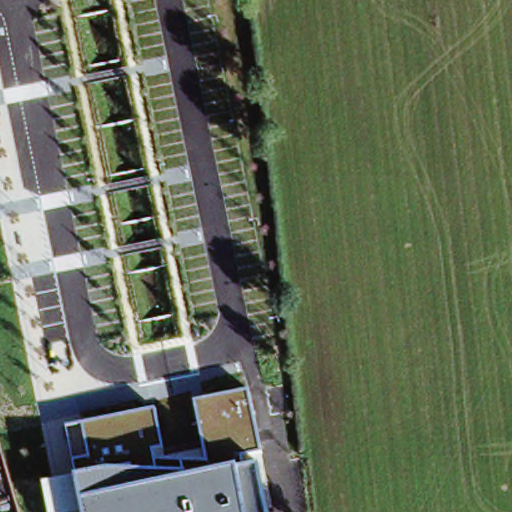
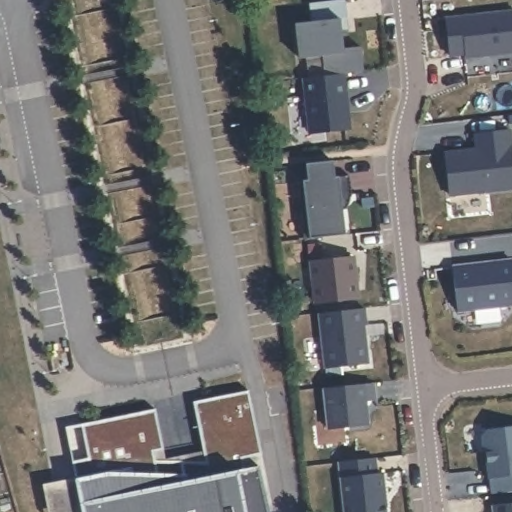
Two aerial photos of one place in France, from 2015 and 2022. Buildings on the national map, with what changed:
new [(306,2),(324,0),(342,0),(344,17),(336,18),(339,48),(357,47),(359,72),(339,74),(324,76),(321,56),(298,58),(294,23),(309,21),(306,2)]
new [(512,11),(512,51),(463,56),(463,53),(448,54),(444,18),(512,11)]
new [(324,76),(339,74),(344,121),(341,125),(307,129),(301,78),(324,76)]
new [(474,149),(473,134),(507,130),(512,175),(512,188),(448,195),(443,152),(474,149)]
new [(310,237),(304,238),(299,181),(304,180),(309,179),(306,163),(334,160),(335,177),(339,176),(349,175),(352,196),(347,209),(344,209),(346,233),(310,237)]
new [(351,257),(356,297),(313,302),(309,262),(351,257)]
new [(512,268),(512,272),(512,304),(454,310),(450,275),(512,268)]
new [(359,309),(361,325),(359,326),(364,364),(323,368),(316,313),(359,309)]
new [(370,383),(372,400),(362,401),(365,425),(326,430),(321,389),(370,383)]
unchanged [(156,409),(165,456),(203,449),(196,401),(247,390),(263,466),(271,512),(49,512),(44,483),(76,476),(67,428),(156,409)]
new [(486,429),(512,427),(512,476),(487,478),(485,463),(487,463),(486,451),(482,452),(479,435),(486,429)]
new [(371,459),(373,474),(379,474),(383,512),(341,512),(335,463),(371,459)]
new [(491,508),(512,506),(512,512),(491,512),(491,508)]

